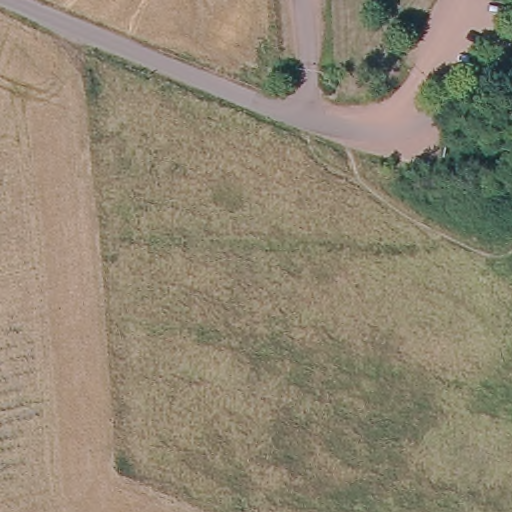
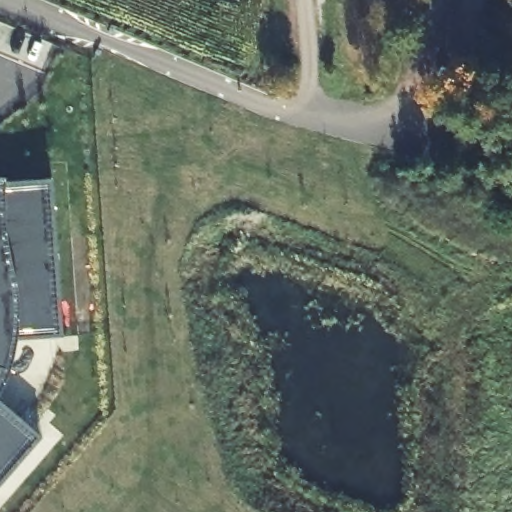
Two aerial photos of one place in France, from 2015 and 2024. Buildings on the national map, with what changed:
new [(62,337),(13,340),(0,378),(0,182),(51,179),(62,337)]
new [(0,486),(0,401),(42,438),(0,486)]

